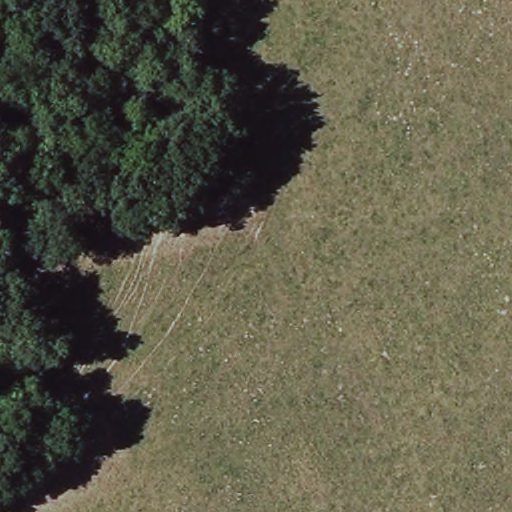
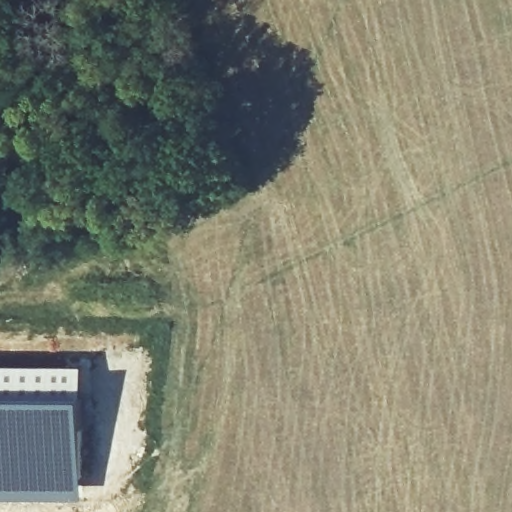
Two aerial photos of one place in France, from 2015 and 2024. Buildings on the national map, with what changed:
new [(84,497),(0,498),(0,362),(85,362),(84,497)]

